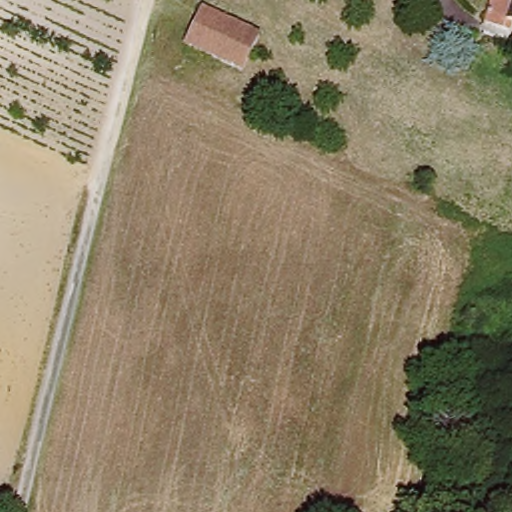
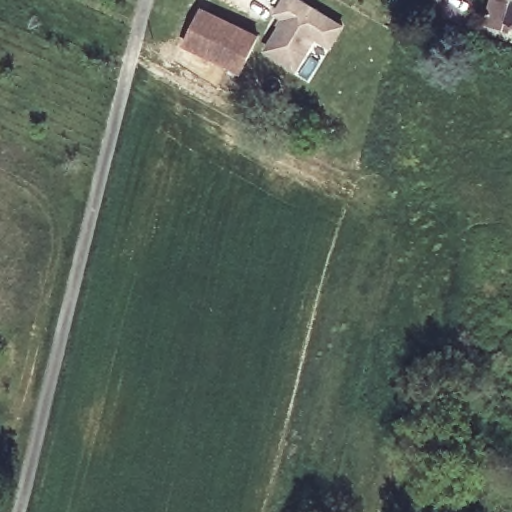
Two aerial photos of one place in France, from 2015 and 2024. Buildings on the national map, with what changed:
new [(332,51),(317,41),(297,72),(263,52),(283,20),(275,14),(282,0),(302,0),(345,26),(332,51)]
unchanged [(495,0),(512,0),(512,23),(490,15),(495,0)]
unchanged [(190,41),(210,10),(260,41),(240,72),(190,41)]

